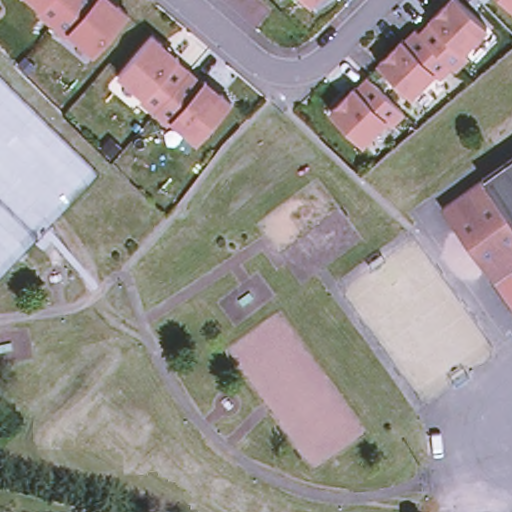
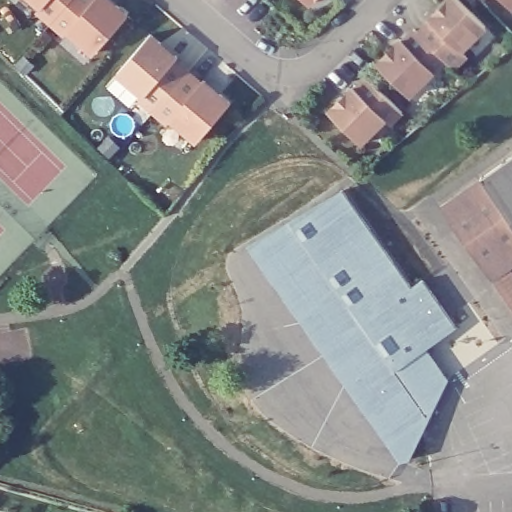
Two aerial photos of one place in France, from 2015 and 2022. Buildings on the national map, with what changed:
unchanged [(41,10),(45,6),(37,0),(72,0),(54,21),(41,10)]
unchanged [(98,52),(72,30),(69,34),(54,21),(72,0),(116,0),(121,4),(131,13),(98,52)]
unchanged [(312,2),(310,0),(315,0),(312,2)]
unchanged [(435,19),(433,17),(450,0),(465,0),(490,25),(465,49),(470,54),(458,67),(455,63),(451,59),(439,47),(422,31),(435,19)]
unchanged [(512,8),(504,0),(512,0),(512,8)]
unchanged [(422,31),(439,47),(451,59),(455,63),(442,75),(437,70),(413,94),(381,62),(406,37),(408,39),(419,27),(422,31)]
unchanged [(152,109),(140,98),(142,94),(116,72),(150,33),(160,41),(177,56),(175,58),(187,69),(152,109)]
unchanged [(197,140),(171,118),(167,122),(152,109),(187,69),(201,81),(203,78),(220,92),(230,101),(197,140)]
unchanged [(378,82),(406,111),(393,123),(388,118),(364,142),(332,110),(357,85),(359,87),(371,75),(378,82)]
unchanged [(512,213),(485,175),(512,156),(512,213)]
unchanged [(444,204),(485,175),(512,213),(512,265),(503,271),(495,277),(479,254),(444,204)]
new [(342,191),(412,288),(422,282),(455,324),(426,348),(450,382),(411,462),(401,465),(251,249),(342,191)]

